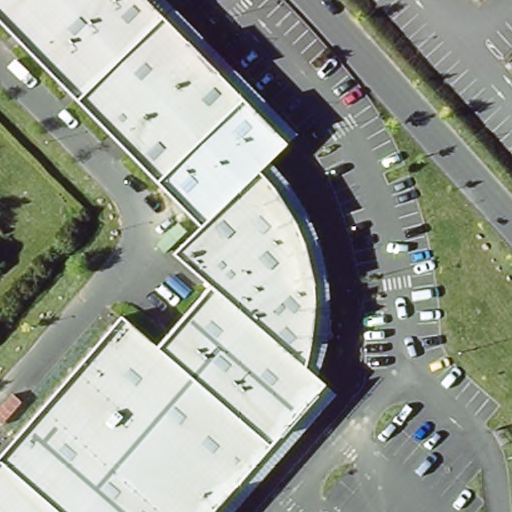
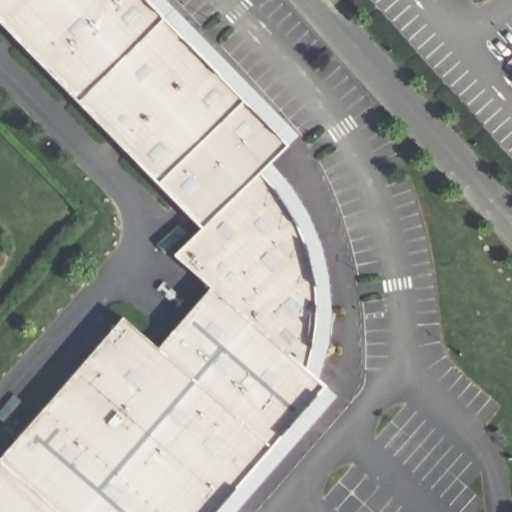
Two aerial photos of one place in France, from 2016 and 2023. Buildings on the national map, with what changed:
unchanged [(202,224),(0,18),(0,0),(149,0),(288,141),(260,169),(281,193),(300,224),(312,259),(316,300),(314,329),(310,356),(305,367),(210,285),(174,253),(202,224)]
unchanged [(210,285),(327,385),(215,512),(0,512),(0,458),(126,315),(157,345),(210,285)]

